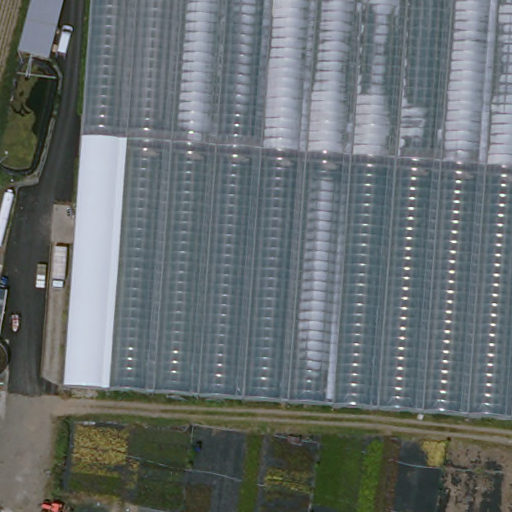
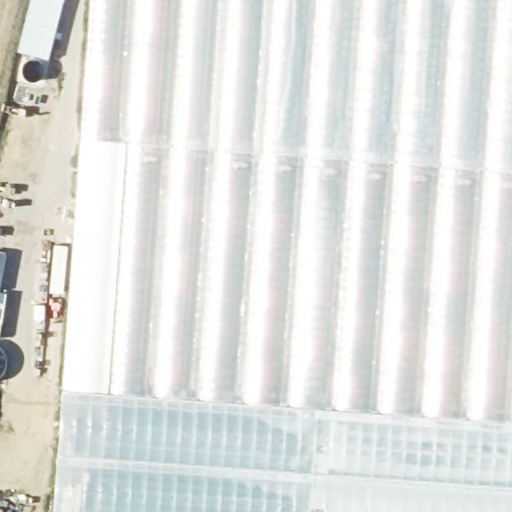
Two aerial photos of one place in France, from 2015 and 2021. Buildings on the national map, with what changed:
unchanged [(22,41),(34,0),(71,0),(57,50),(22,41)]
unchanged [(66,390),(92,0),(512,0),(512,422),(66,390)]
new [(0,292),(6,293),(1,335),(0,335),(0,292)]
new [(57,512),(66,390),(512,422),(512,512),(57,512)]

